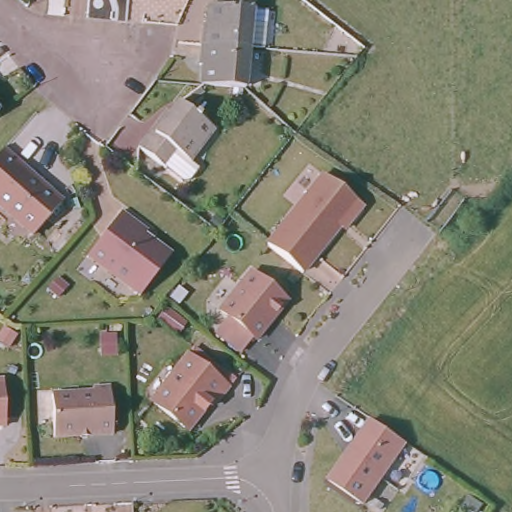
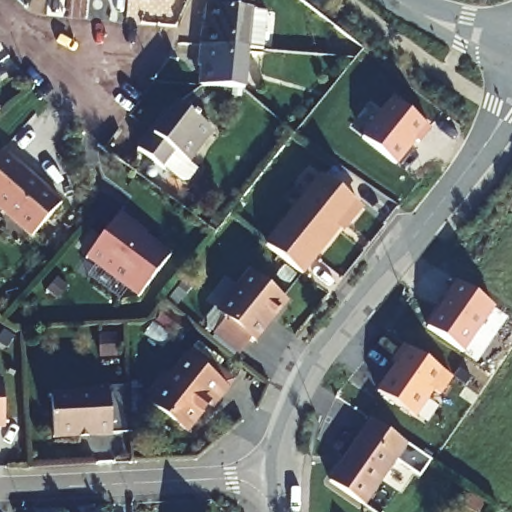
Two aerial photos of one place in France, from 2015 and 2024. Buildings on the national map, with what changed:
unchanged [(199,47),(201,18),(208,19),(209,5),(213,5),(213,0),(240,0),(240,6),(248,7),(246,53),(199,47)]
unchanged [(203,67),(198,66),(199,47),(246,53),(243,93),(203,87),(203,67)]
new [(417,140),(397,166),(362,136),(394,99),(432,130),(421,144),(417,140)]
unchanged [(158,113),(161,115),(174,100),(202,124),(178,155),(191,166),(179,180),(134,142),(158,113)]
unchanged [(0,108),(0,104),(2,107),(0,108)]
unchanged [(2,150),(58,200),(29,237),(0,211),(0,152),(2,150)]
unchanged [(323,175),(358,201),(359,205),(359,210),(358,215),(356,217),(353,219),(349,219),(346,219),(303,273),(268,245),(323,175)]
unchanged [(125,212),(151,235),(148,238),(154,242),(153,250),(163,257),(168,254),(173,258),(138,300),(86,256),(125,212)]
unchanged [(286,300),(258,338),(253,335),(240,350),(218,331),(228,318),(219,310),(250,271),(286,300)]
new [(463,353),(422,325),(454,282),(494,310),(463,353)]
new [(391,363),(404,346),(453,380),(440,397),(434,393),(417,417),(376,391),(394,366),(391,363)]
unchanged [(200,417),(196,415),(174,442),(141,414),(189,355),(196,360),(202,351),(223,368),(217,378),(226,385),(200,417)]
unchanged [(52,393),(90,390),(90,383),(108,382),(111,432),(54,435),(52,393)]
unchanged [(1,383),(4,426),(0,427),(0,384),(1,383)]
unchanged [(360,502),(329,478),(374,417),(405,440),(360,502)]

